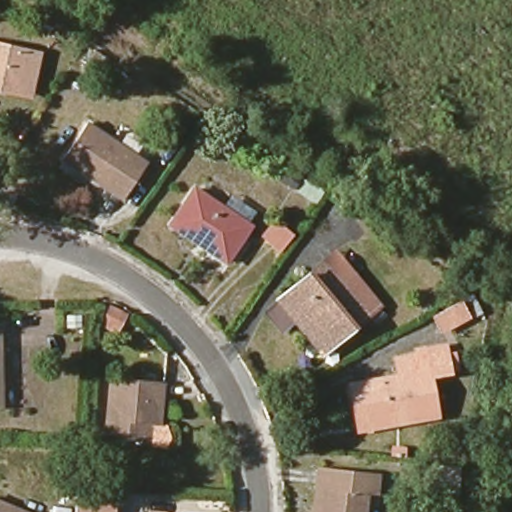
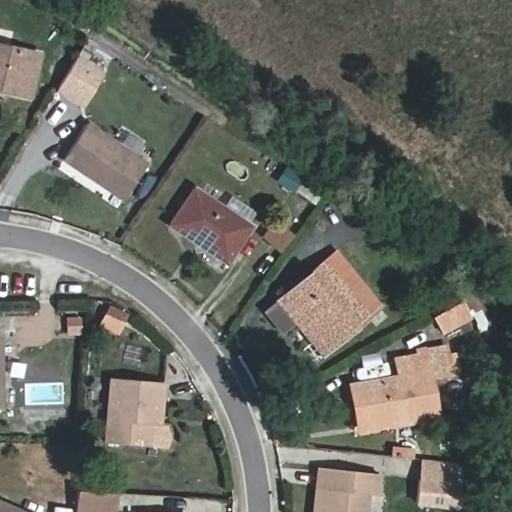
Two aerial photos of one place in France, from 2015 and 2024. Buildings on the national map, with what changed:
new [(114,55),(107,68),(103,65),(101,69),(95,90),(83,110),(56,93),(88,39),(114,55)]
unchanged [(30,95),(7,90),(0,88),(0,46),(39,55),(30,95)]
unchanged [(125,201),(64,160),(89,124),(149,165),(125,201)]
unchanged [(227,263),(170,226),(194,189),(251,226),(227,263)]
unchanged [(297,237),(285,251),(268,237),(279,221),(297,237)]
unchanged [(274,314),(289,301),(287,299),(329,263),(341,253),(373,293),(385,307),(331,351),(302,316),(287,329),(274,314)]
unchanged [(438,322),(465,307),(474,302),(475,302),(483,317),(473,322),(447,337),(438,322)]
unchanged [(117,333),(101,325),(110,306),(126,314),(117,333)]
unchanged [(360,413),(356,391),(405,382),(401,364),(423,360),(422,355),(431,353),(432,355),(452,351),(454,361),(460,359),(463,376),(456,377),(436,381),(442,417),(373,430),(363,432),(360,413)]
unchanged [(151,425),(149,446),(107,442),(112,378),(163,383),(160,417),(160,426),(151,425)]
new [(421,460),(462,464),(460,484),(459,508),(417,504),(419,480),(421,460)]
unchanged [(325,491),(317,490),(320,469),(380,475),(378,495),(369,494),(367,512),(323,512),(325,491)]
unchanged [(112,512),(76,512),(78,490),(113,492),(112,512)]
unchanged [(0,501),(25,512),(0,512),(0,501)]

